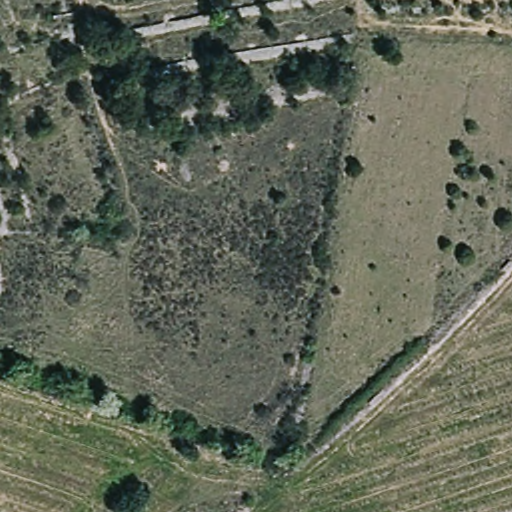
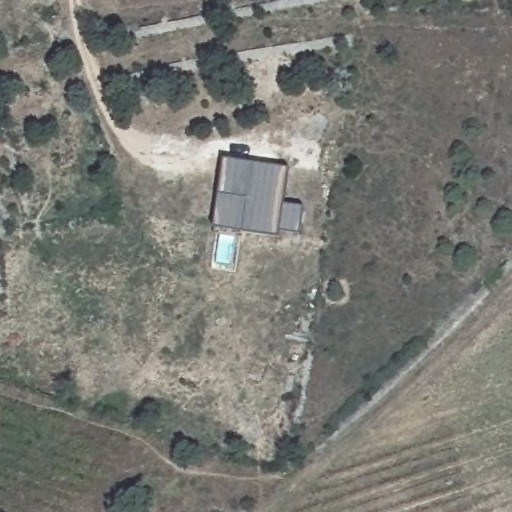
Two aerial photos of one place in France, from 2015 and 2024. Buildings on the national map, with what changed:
new [(226,155),(289,167),(283,205),(304,207),(300,234),(279,231),(279,237),(216,227),(226,155)]

